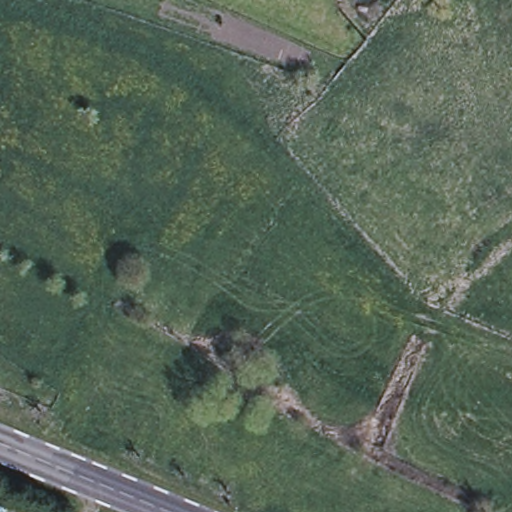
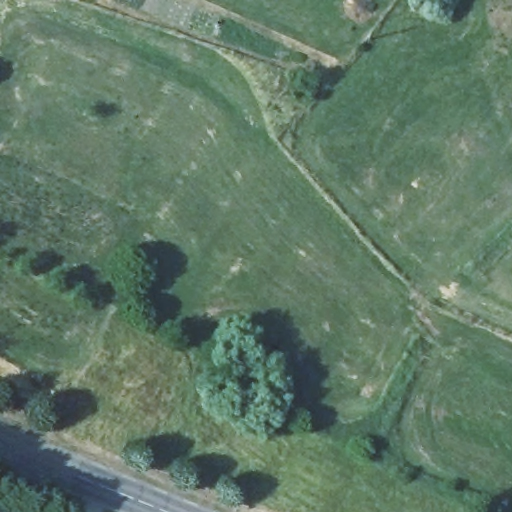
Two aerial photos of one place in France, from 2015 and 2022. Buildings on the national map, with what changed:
unchanged [(292,78),(289,90),(277,87),(280,75),(292,78)]

